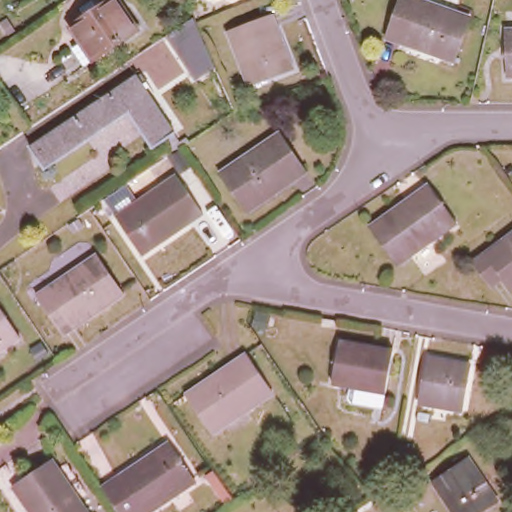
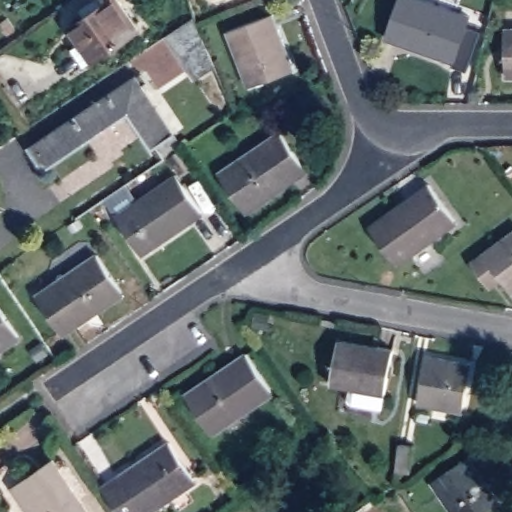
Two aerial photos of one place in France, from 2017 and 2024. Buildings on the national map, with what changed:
unchanged [(143,33),(97,63),(90,69),(77,51),(86,45),(76,30),(90,20),(85,11),(102,0),(103,0),(109,8),(121,0),(143,33)]
unchanged [(389,29),(408,0),(431,0),(474,30),(447,68),(412,44),(402,38),(389,29)]
unchanged [(167,35),(193,17),(195,20),(214,65),(195,77),(167,35)]
unchanged [(292,71),(246,88),(226,33),(272,18),(292,71)]
unchanged [(505,73),(505,26),(512,26),(512,74),(505,73)]
unchanged [(143,133),(128,113),(47,167),(32,143),(137,74),(142,71),(149,82),(145,85),(167,117),(176,131),(152,147),(143,133)]
unchanged [(247,213),(220,173),(280,132),(308,172),(296,181),(285,188),(247,213)]
unchanged [(395,265),(367,225),(413,192),(425,184),(437,176),(465,215),(395,265)]
unchanged [(201,218),(142,259),(115,219),(175,179),(201,218)]
unchanged [(502,279),(489,288),(472,263),(512,235),(512,292),(502,279)]
unchanged [(67,337),(40,297),(100,256),(127,296),(92,320),(82,327),(67,337)]
unchanged [(0,355),(0,314),(19,342),(0,355)]
unchanged [(405,399),(333,386),(342,338),(414,351),(405,399)]
unchanged [(278,395),(217,435),(190,395),(227,371),(237,363),(250,355),(278,395)]
unchanged [(468,414),(425,406),(434,358),(477,366),(468,414)]
unchanged [(156,512),(122,512),(106,488),(173,443),(200,482),(156,512)]
unchanged [(481,512),(453,512),(433,481),(470,458),(497,501),(481,512)]
unchanged [(25,501),(16,489),(56,461),(90,512),(31,512),(31,511),(25,501)]

